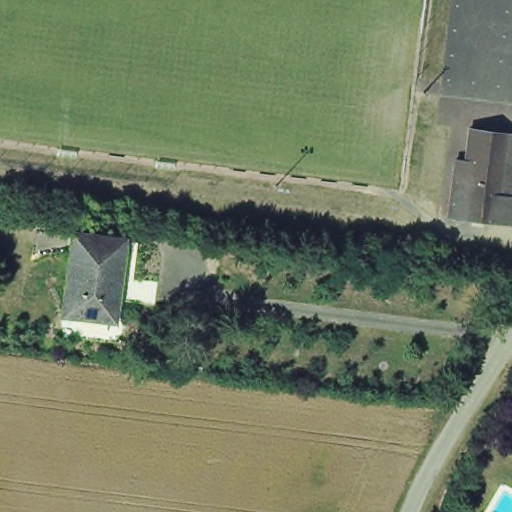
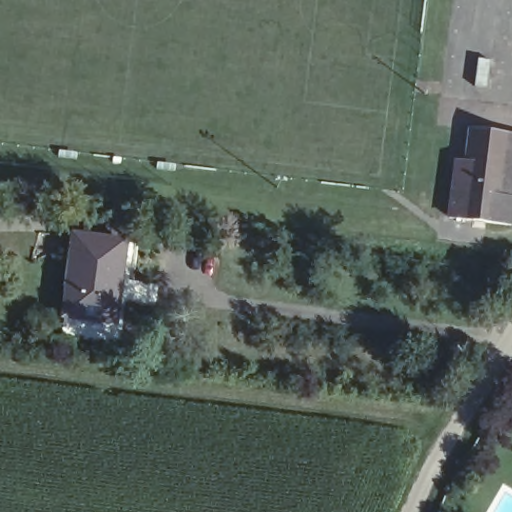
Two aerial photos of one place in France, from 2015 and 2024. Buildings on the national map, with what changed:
unchanged [(445,202),(447,176),(450,159),(459,160),(462,126),(501,131),(493,192),(509,194),(505,223),(477,220),(443,216),(445,202)]
unchanged [(501,131),(512,132),(512,182),(510,194),(509,194),(493,192),(501,131)]
unchanged [(110,317),(60,311),(68,235),(119,241),(110,317)]

